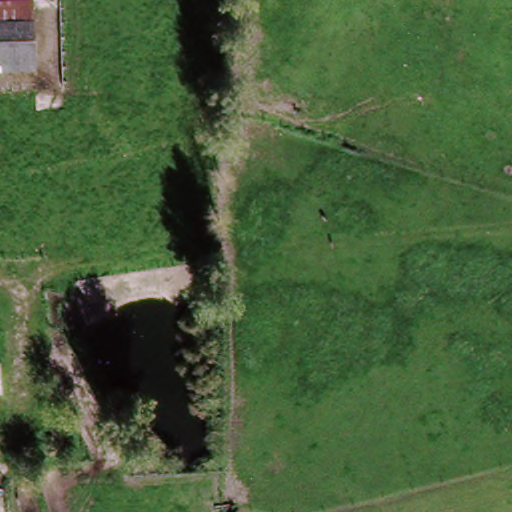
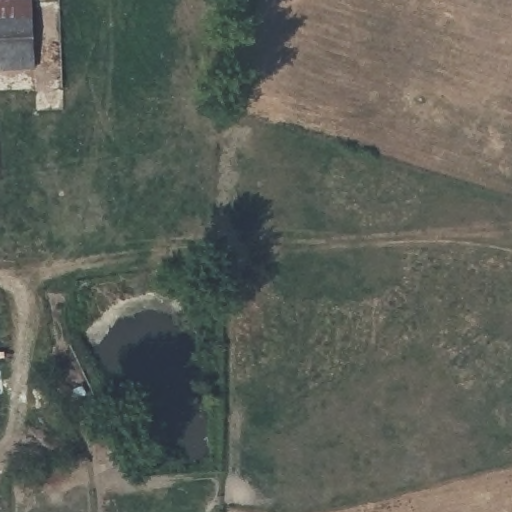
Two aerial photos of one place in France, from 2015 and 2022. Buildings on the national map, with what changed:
unchanged [(34,9),(31,78),(0,77),(0,8),(34,9)]

